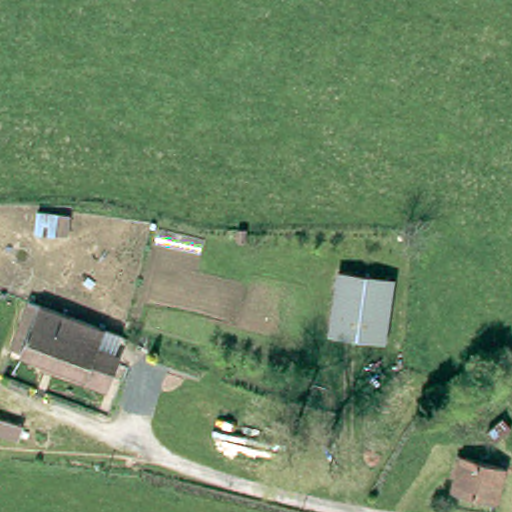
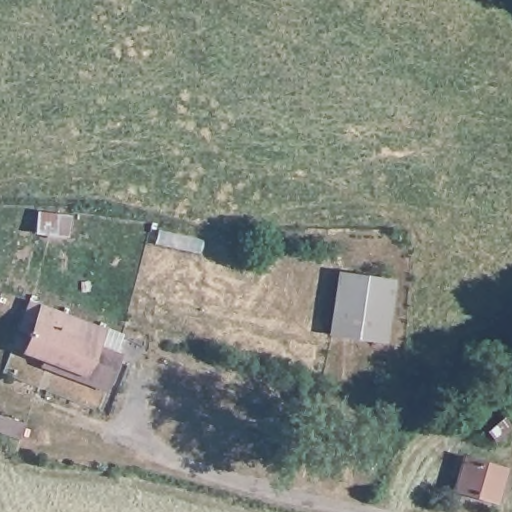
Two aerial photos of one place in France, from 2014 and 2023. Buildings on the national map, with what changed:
unchanged [(393,278),(387,339),(337,333),(343,272),(393,278)]
unchanged [(15,347),(28,301),(60,311),(124,331),(120,343),(118,352),(129,355),(127,360),(133,361),(128,376),(116,372),(115,379),(112,388),(45,366),(46,357),(15,347)]
unchanged [(20,444),(0,438),(0,414),(26,421),(20,444)]
unchanged [(506,468),(496,501),(456,489),(460,477),(453,476),(456,461),(463,463),(466,455),(506,468)]

